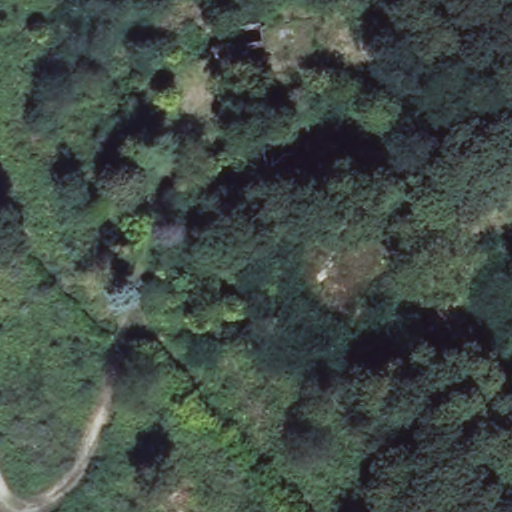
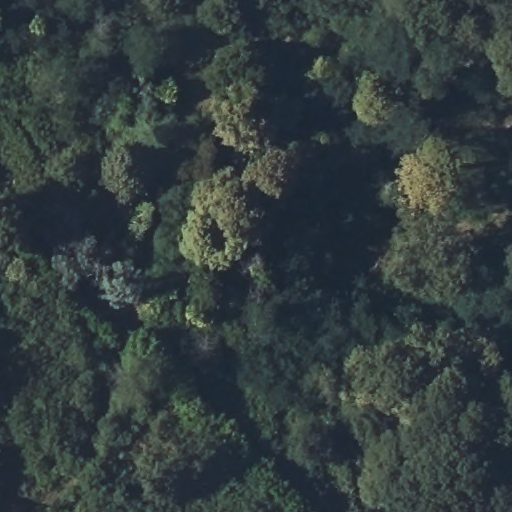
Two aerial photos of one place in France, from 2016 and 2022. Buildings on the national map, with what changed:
unchanged [(266,24),(276,69),(259,74),(261,82),(225,90),(215,36),(266,24)]

